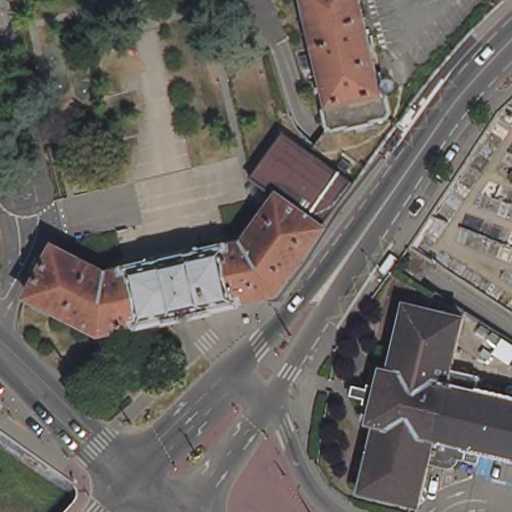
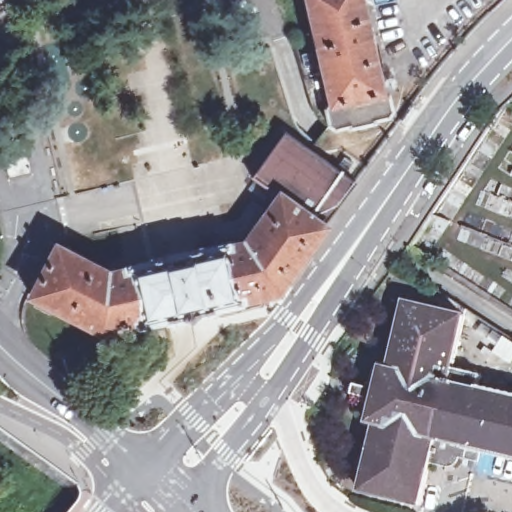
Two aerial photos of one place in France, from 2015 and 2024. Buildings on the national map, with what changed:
unchanged [(388,87),(395,88),(399,106),(394,114),(383,116),(381,119),(354,125),(354,123),(339,126),(333,124),(329,105),(332,98),(335,97),(312,0),(366,0),(386,87),(388,87)]
unchanged [(143,322),(142,317),(118,323),(105,327),(66,307),(35,290),(61,242),(112,269),(129,265),(129,263),(156,258),(155,256),(161,255),(198,247),(200,247),(201,249),(230,242),(231,244),(246,240),(283,193),(254,174),(288,129),(360,180),(328,222),(329,222),(309,249),(282,287),(272,288),(243,295),(243,298),(221,303),(218,305),(217,306),(212,307),(206,309),(178,316),(174,317),(171,317),(170,315),(143,322)]
unchanged [(371,393),(372,392),(359,389),(361,379),(374,382),(384,383),(390,357),(396,358),(410,296),(469,310),(457,362),(486,368),(483,385),(506,391),(512,392),(512,453),(484,446),(471,443),(468,455),(449,450),(442,450),(437,448),(424,499),(366,486),(381,423),(375,422),(381,396),(371,393)]

